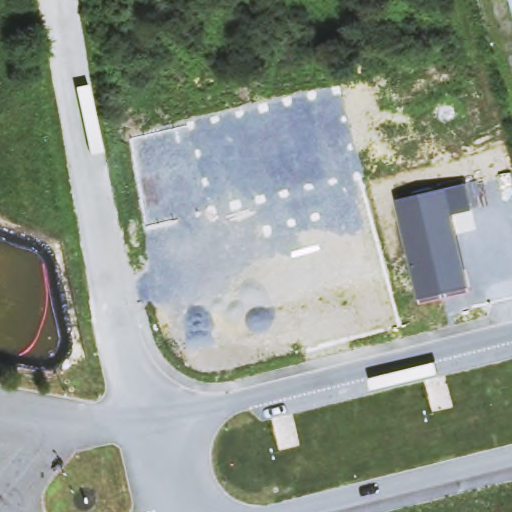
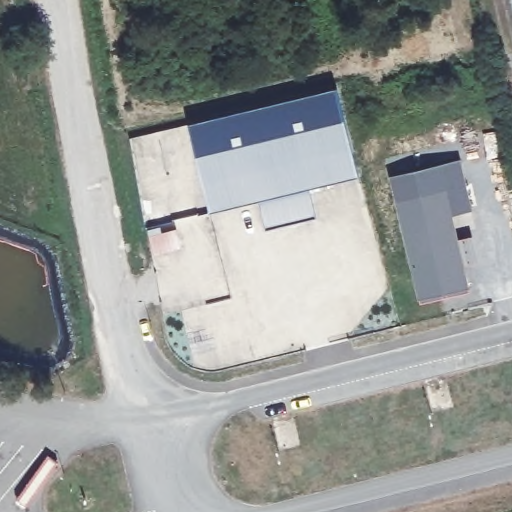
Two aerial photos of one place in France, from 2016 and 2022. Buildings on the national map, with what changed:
new [(267,227),(260,199),(211,211),(190,122),(337,87),(357,176),(310,187),(316,217),(267,227)]
new [(396,200),(391,176),(460,159),(465,185),(396,200)]
unchanged [(418,297),(396,200),(465,185),(471,211),(451,215),(468,288),(470,292),(420,305),(418,297)]

